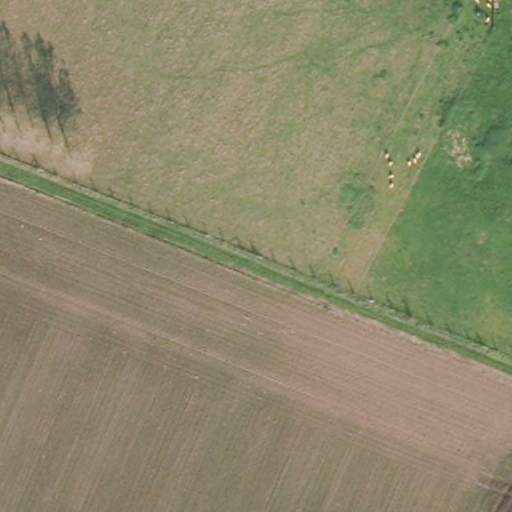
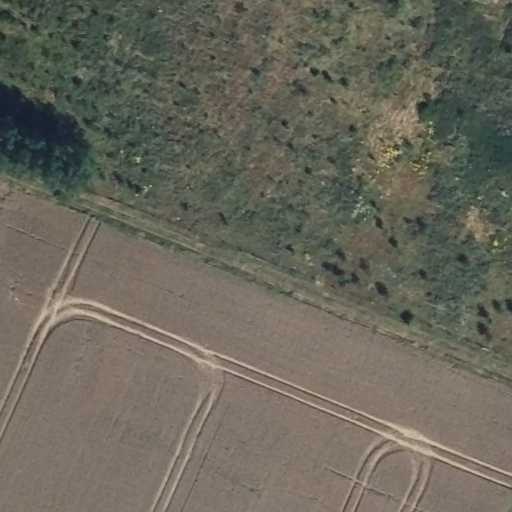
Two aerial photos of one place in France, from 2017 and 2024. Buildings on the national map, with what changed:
unchanged [(500,1),(498,0),(501,0),(500,1)]

